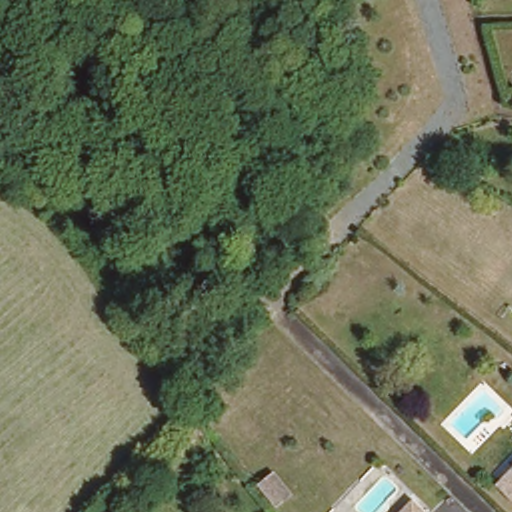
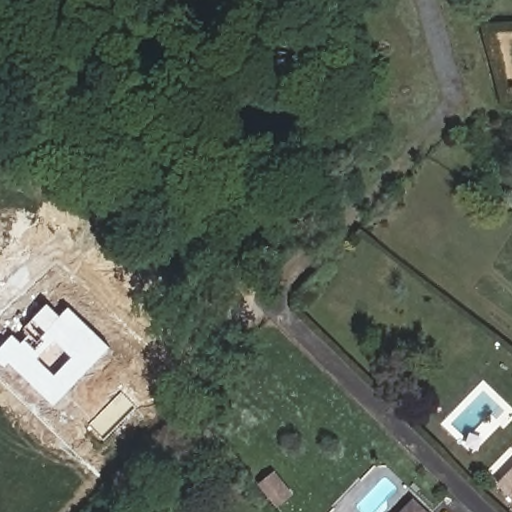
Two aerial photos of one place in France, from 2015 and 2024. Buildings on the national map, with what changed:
new [(53,406),(9,363),(4,370),(0,366),(0,348),(12,336),(20,343),(29,334),(23,328),(48,303),(60,316),(69,307),(110,347),(53,406)]
unchanged [(512,468),(512,491),(500,481),(512,468)]
unchanged [(416,507),(421,512),(412,512),(416,507)]

